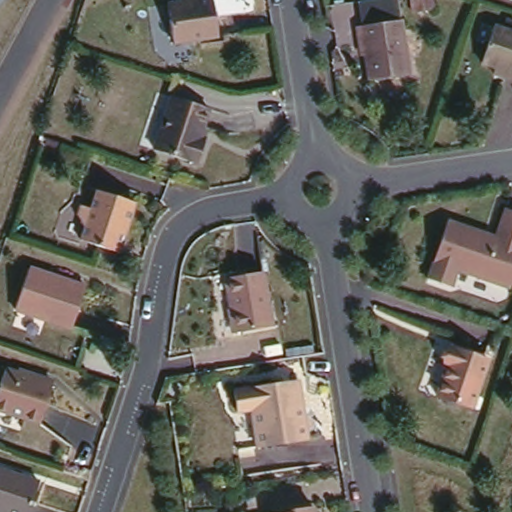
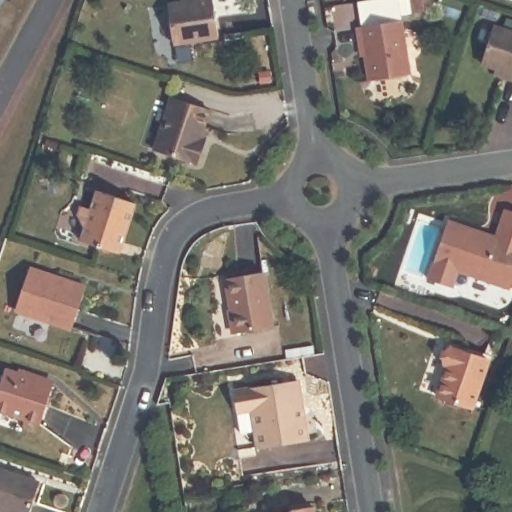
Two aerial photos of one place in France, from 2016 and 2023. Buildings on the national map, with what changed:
unchanged [(5,0),(0,6),(0,0),(5,0)]
unchanged [(221,42),(174,48),(171,13),(197,10),(195,2),(216,1),(221,42)]
unchanged [(414,73),(373,82),(369,56),(364,58),(358,28),(364,27),(403,19),(414,73)]
unchanged [(512,82),(503,78),(507,70),(480,60),(493,27),(512,33),(512,82)]
unchanged [(209,112),(198,140),(205,142),(196,165),(152,150),(171,98),(209,112)]
unchanged [(136,206),(117,256),(76,244),(83,231),(71,219),(90,213),(95,192),(136,206)]
unchanged [(506,212),(512,215),(512,279),(507,293),(456,274),(450,292),(427,285),(448,222),(497,240),(506,212)]
unchanged [(87,295),(73,334),(14,314),(30,274),(87,295)]
unchanged [(275,327),(237,333),(231,281),(268,275),(275,327)]
unchanged [(492,365),(478,408),(439,396),(455,353),(492,365)]
unchanged [(52,381),(38,424),(0,412),(0,382),(5,366),(52,381)]
unchanged [(311,442),(258,451),(253,414),(235,416),(232,393),(302,386),(311,442)]
unchanged [(39,481),(29,512),(0,512),(0,468),(39,481)]
unchanged [(314,512),(292,512),(291,511),(314,508),(314,512)]

